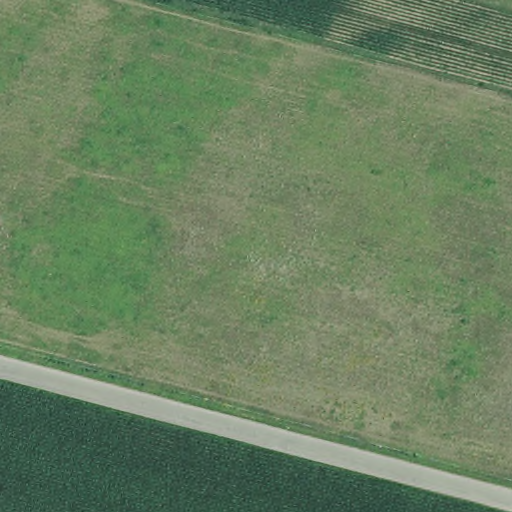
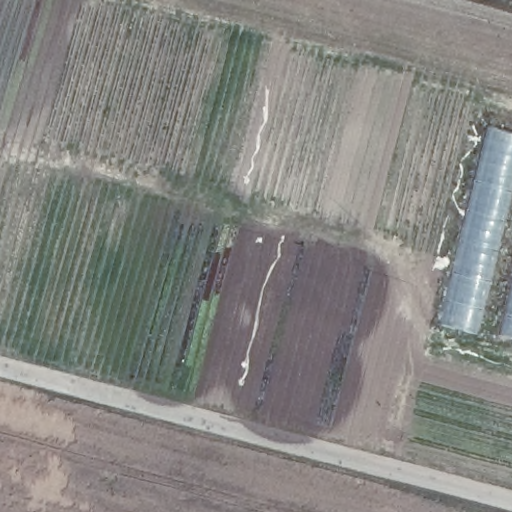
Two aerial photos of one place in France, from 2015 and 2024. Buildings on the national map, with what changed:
new [(448,282),(487,125),(512,132),(512,197),(508,212),(489,297),(478,336),(436,324),(448,282)]
new [(512,279),(512,337),(499,334),(512,279)]

